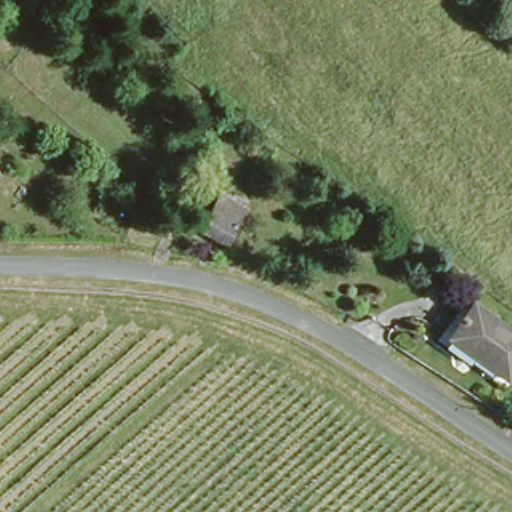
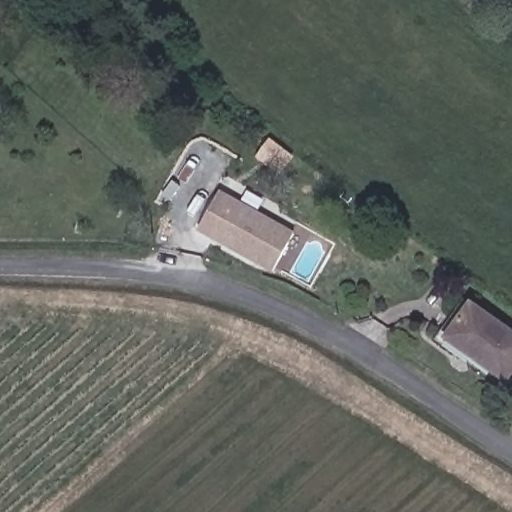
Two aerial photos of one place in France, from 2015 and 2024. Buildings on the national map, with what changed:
new [(295,232),(273,272),(197,230),(221,191),(295,232)]
demolished [(207,234),(219,217),(232,199),(257,215),(244,234),(232,250),(207,234)]
unchanged [(512,362),(505,371),(447,330),(474,293),(512,321),(512,362)]

